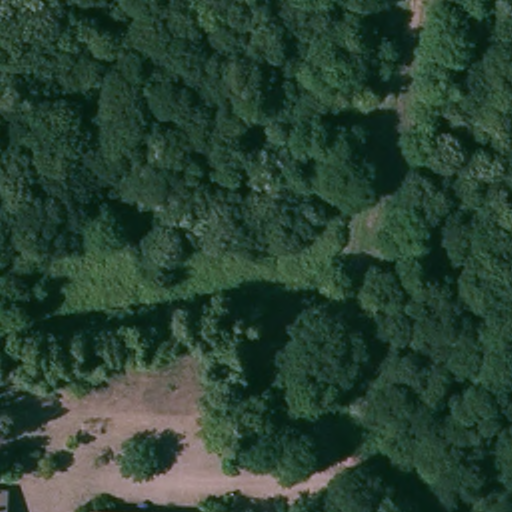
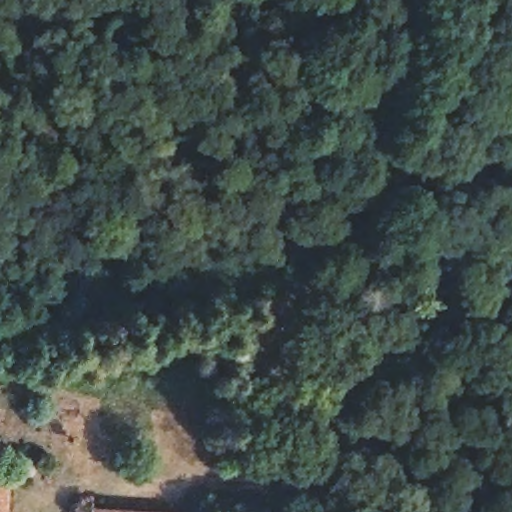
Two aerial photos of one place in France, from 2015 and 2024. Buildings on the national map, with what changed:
unchanged [(9,491),(7,512),(0,512),(0,490),(9,491)]

